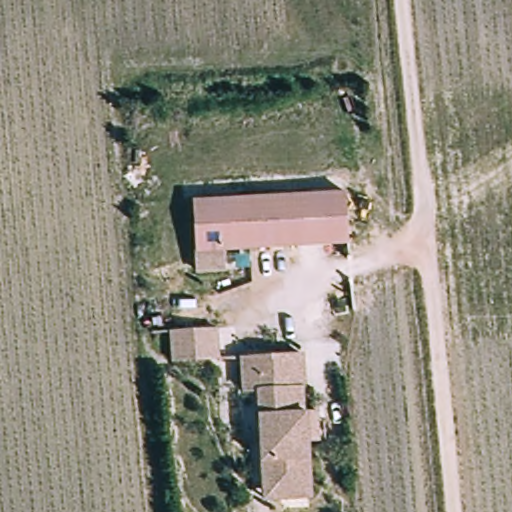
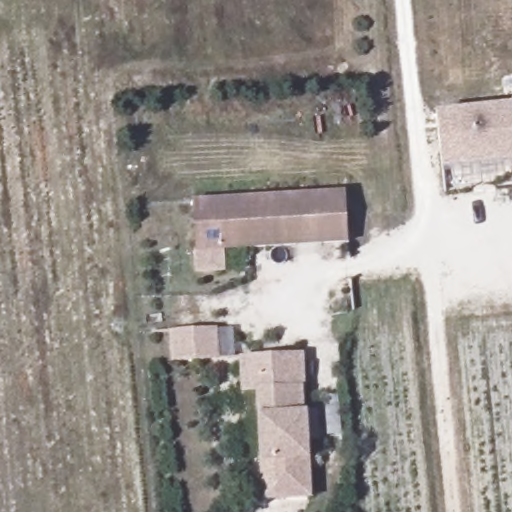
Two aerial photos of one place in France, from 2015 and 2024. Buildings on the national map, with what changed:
new [(512,162),(442,170),(436,112),(512,105),(512,162)]
unchanged [(343,237),(323,239),(217,245),(218,264),(191,266),(187,195),(318,188),(340,187),(343,237)]
unchanged [(211,319),(213,349),(166,351),(165,321),(211,319)]
unchanged [(258,381),(243,382),(241,348),(279,346),(301,345),(303,379),(305,402),(315,401),(317,431),(307,431),(310,487),(276,489),(264,489),(262,451),(258,381)]

